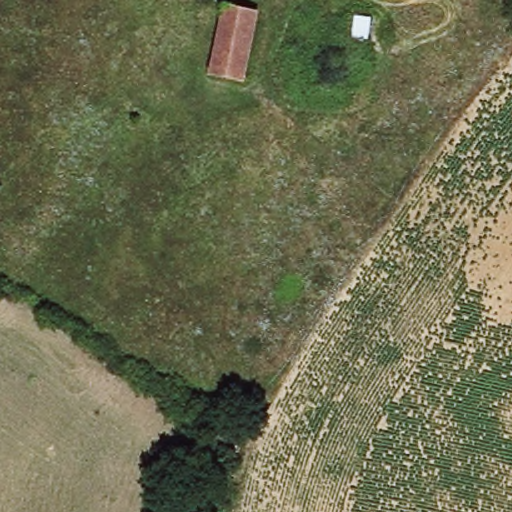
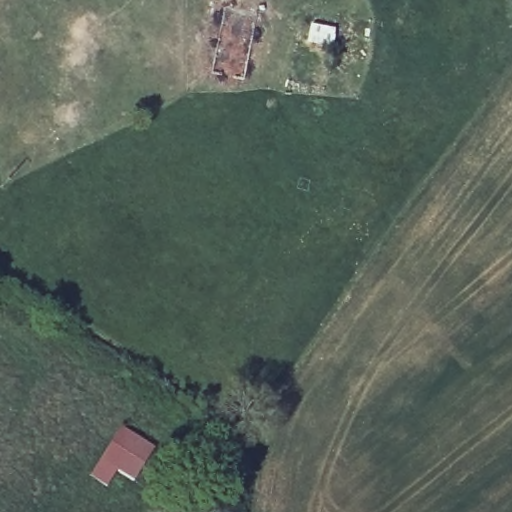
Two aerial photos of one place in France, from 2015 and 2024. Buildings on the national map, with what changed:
unchanged [(268,14),(255,46),(241,80),(213,68),(239,4),(258,11),(268,14)]
new [(155,447),(132,481),(117,471),(106,487),(89,476),(122,425),(155,447)]

